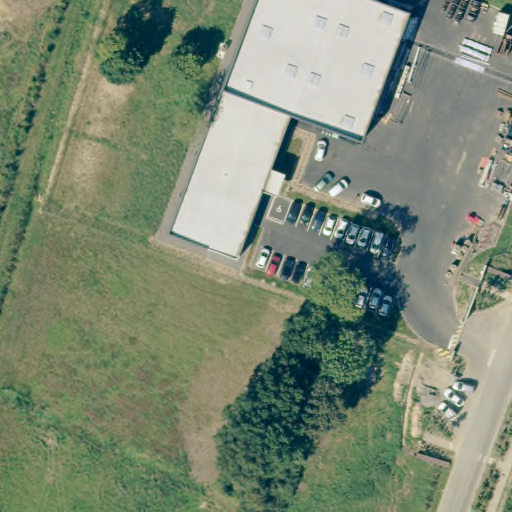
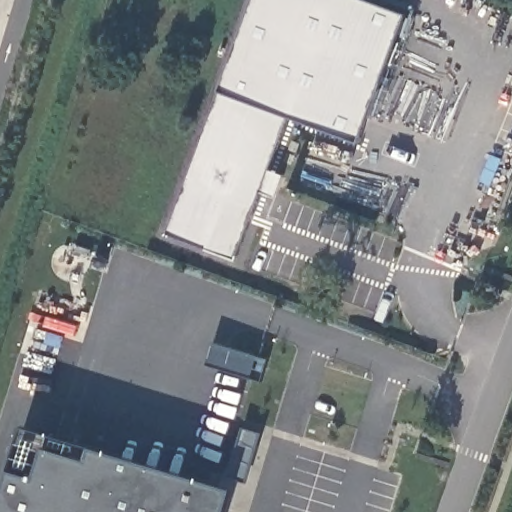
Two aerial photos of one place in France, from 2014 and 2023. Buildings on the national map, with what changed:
unchanged [(165,235),(221,90),(254,0),(365,0),(403,14),(354,140),(287,115),(266,169),(282,175),(274,197),(258,192),(236,260),(165,235)]
demolished [(330,314),(346,288),(355,294),(341,320),(330,314)]
new [(213,343),(269,360),(262,382),(207,364),(213,343)]
new [(228,512),(0,512),(25,426),(235,490),(228,512)]
new [(262,432),(250,475),(232,470),(245,427),(262,432)]

